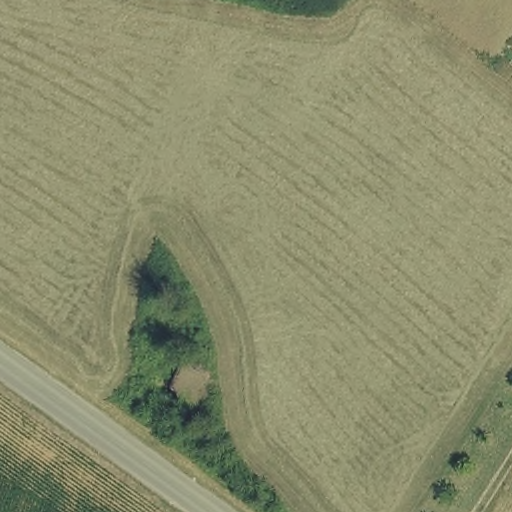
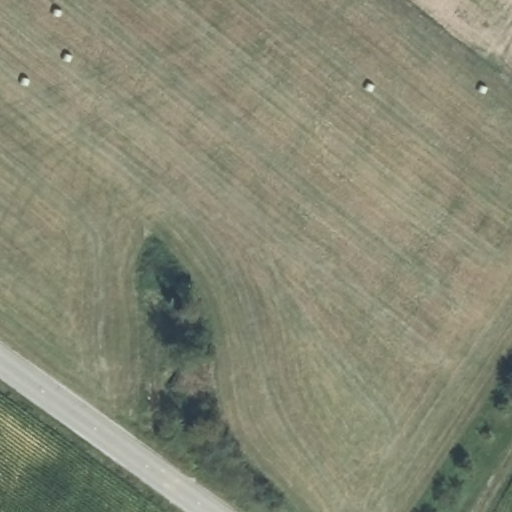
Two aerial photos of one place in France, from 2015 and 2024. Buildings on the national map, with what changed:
unchanged [(167,369),(173,313),(210,321),(222,409),(190,421),(167,369)]

